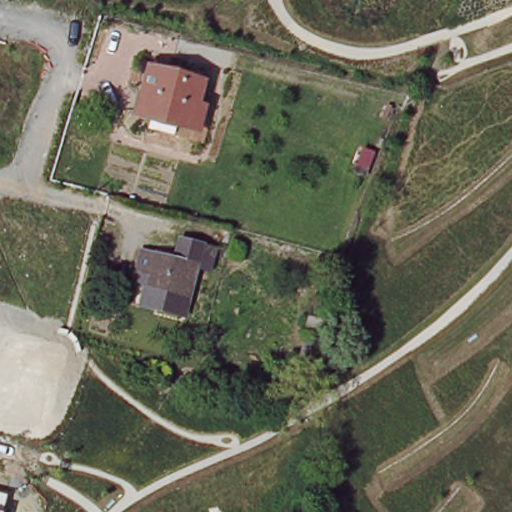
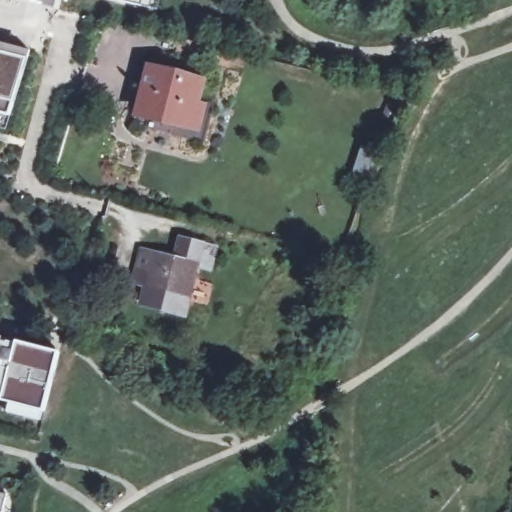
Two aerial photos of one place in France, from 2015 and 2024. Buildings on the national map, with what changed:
new [(116,2),(107,0),(155,0),(153,10),(116,2)]
new [(30,52),(27,60),(13,104),(9,116),(0,114),(0,44),(30,52)]
unchanged [(195,125),(185,122),(134,107),(147,64),(197,78),(192,100),(201,102),(195,125)]
unchanged [(187,312),(162,306),(167,285),(140,278),(147,249),(180,257),(187,237),(206,242),(187,312)]
unchanged [(328,297),(323,322),(306,320),(309,305),(310,305),(312,294),(328,297)]
new [(1,338),(0,342),(0,338),(1,338)]
new [(15,345),(16,342),(58,353),(40,421),(6,412),(8,403),(0,401),(2,397),(0,397),(0,342),(15,345)]
unchanged [(1,512),(0,512),(0,494),(5,496),(1,512)]

